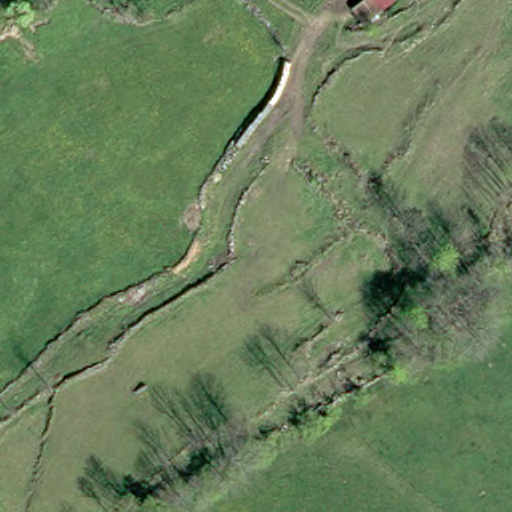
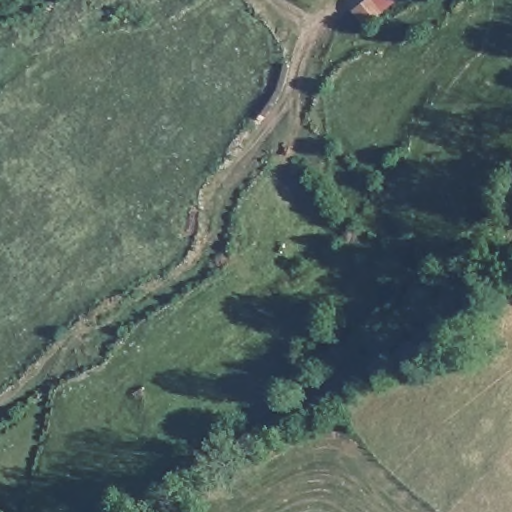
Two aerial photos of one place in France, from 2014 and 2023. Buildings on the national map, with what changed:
[]

